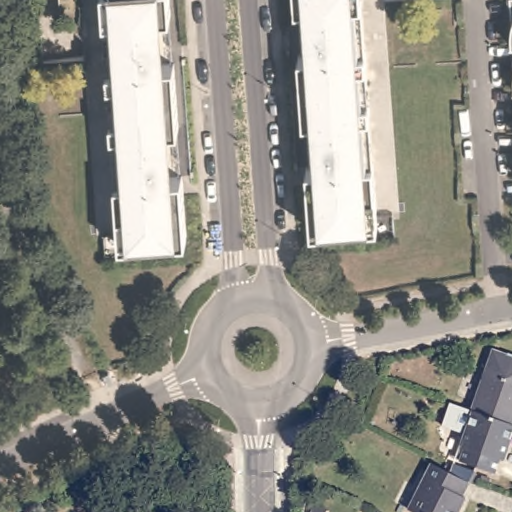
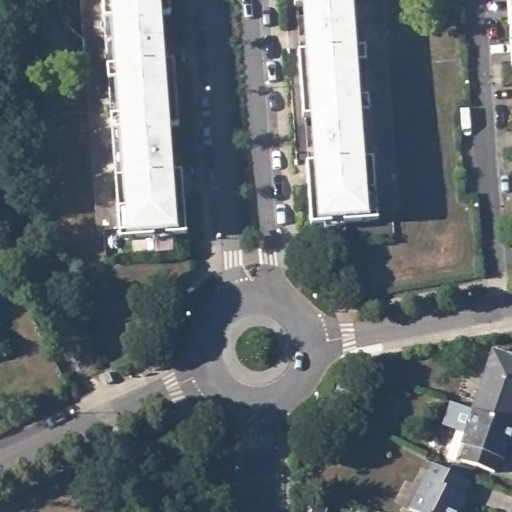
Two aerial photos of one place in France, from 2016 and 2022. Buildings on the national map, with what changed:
unchanged [(174,65),(178,132),(182,177),(186,242),(171,242),(126,245),(120,245),(119,233),(115,181),(112,137),(111,121),(109,86),(107,70),(104,24),(102,0),(169,0),(174,65)]
unchanged [(360,6),(363,54),(364,70),(367,120),(371,164),(375,226),(368,226),(325,230),(310,231),(306,171),(306,167),(303,124),(298,56),(295,9),(294,0),(359,0),(360,6)]
unchanged [(498,351),(512,356),(512,422),(478,410),(498,351)]
unchanged [(512,422),(512,442),(506,459),(501,457),(496,471),(464,460),(469,445),(467,443),(478,410),(512,422)]
unchanged [(467,500),(471,502),(466,512),(416,512),(438,467),(474,486),(467,500)]

